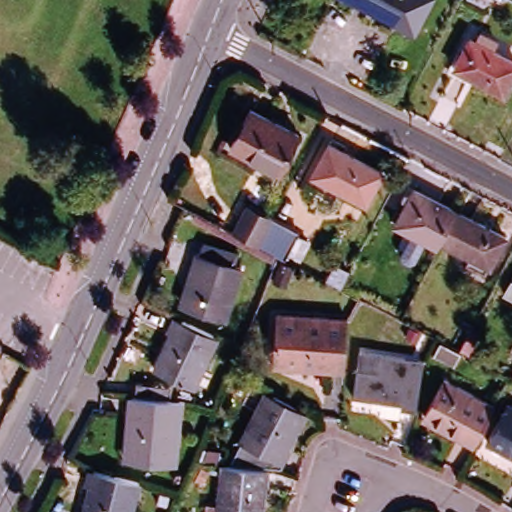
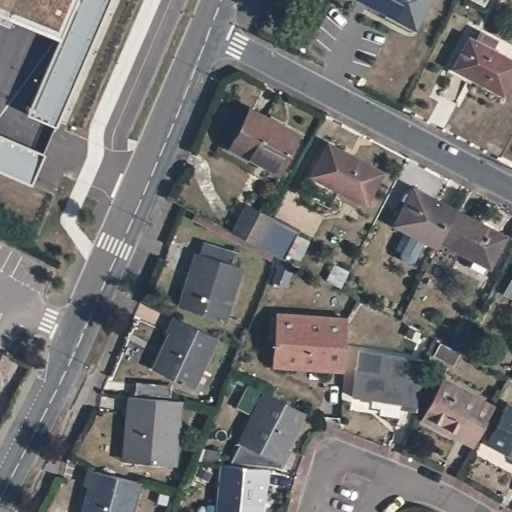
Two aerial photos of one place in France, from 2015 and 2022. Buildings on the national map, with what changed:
new [(61,36),(0,10),(0,0),(110,0),(55,124),(26,112),(61,36)]
unchanged [(367,0),(427,0),(413,25),(367,0)]
unchanged [(503,90),(455,65),(470,35),(477,38),(481,30),(495,36),(490,45),(512,56),(512,73),(503,90)]
unchanged [(248,109),(297,135),(278,172),(230,146),(248,109)]
new [(31,183),(0,169),(0,136),(44,155),(31,183)]
unchanged [(328,144),(381,172),(365,203),(311,175),(328,144)]
unchanged [(398,224),(417,189),(460,212),(445,243),(441,249),(398,224)]
unchanged [(291,261),(263,246),(238,233),(245,219),(252,207),(277,219),(305,234),(291,261)]
unchanged [(509,237),(492,268),(445,243),(460,212),(509,237)]
unchanged [(193,272),(196,259),(200,244),(230,251),(226,265),(241,269),(228,320),(190,310),(183,309),(193,272)]
unchanged [(508,294),(512,287),(512,297),(508,294)]
unchanged [(275,357),(278,310),(346,314),(343,368),(328,367),(275,363),(275,357)]
unchanged [(217,339),(192,389),(154,369),(171,334),(165,332),(172,318),(217,339)]
unchanged [(449,348),(462,323),(470,328),(457,352),(449,348)]
unchanged [(403,408),(403,404),(352,401),(355,371),(377,372),(379,354),(421,357),(417,409),(403,408)]
unchanged [(460,438),(463,433),(427,414),(447,378),(495,403),(472,444),(460,438)]
unchanged [(131,381),(161,382),(160,392),(130,391),(131,381)]
unchanged [(272,389),(306,411),(287,444),(291,447),(285,458),(282,462),(231,458),(245,436),(272,389)]
unchanged [(130,408),(125,408),(125,395),(176,398),(172,442),(155,441),(154,462),(126,459),(130,408)]
unchanged [(486,437),(506,401),(512,404),(512,451),(486,437)]
unchanged [(225,459),(270,464),(268,479),(265,479),(261,512),(222,512),(225,459)]
unchanged [(136,483),(127,512),(77,512),(86,484),(80,482),(85,466),(136,483)]

